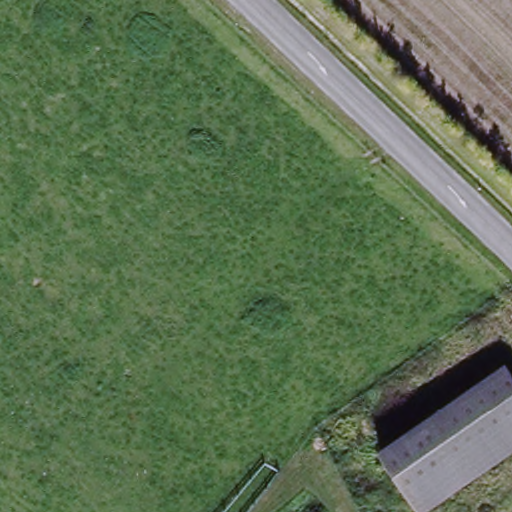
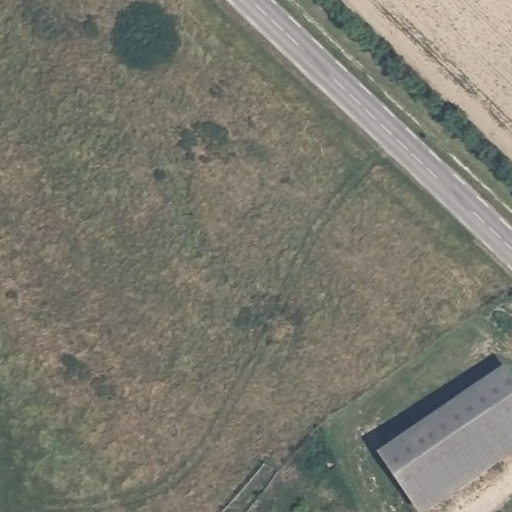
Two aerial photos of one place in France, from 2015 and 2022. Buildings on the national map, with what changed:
unchanged [(506,368),(512,376),(512,455),(431,512),(414,512),(373,458),(498,374),(506,368)]

